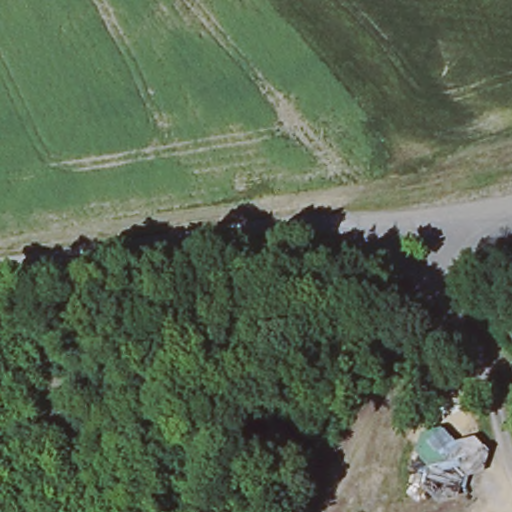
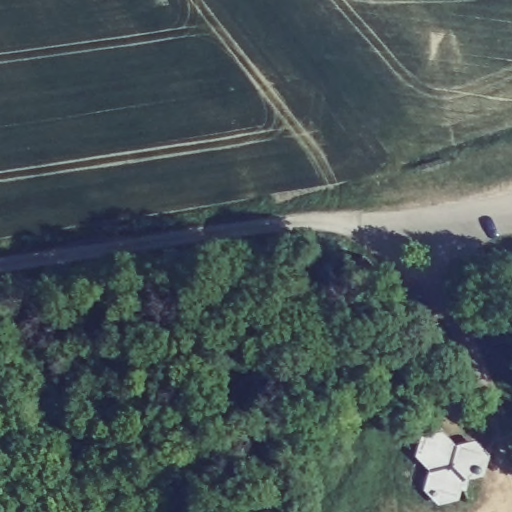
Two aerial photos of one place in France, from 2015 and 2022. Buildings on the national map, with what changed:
unchanged [(455,445),(475,440),(488,463),(450,503),(423,490),(416,437),(443,430),(455,445)]

